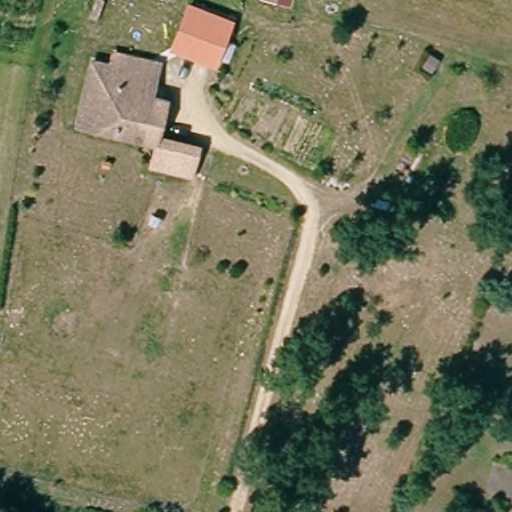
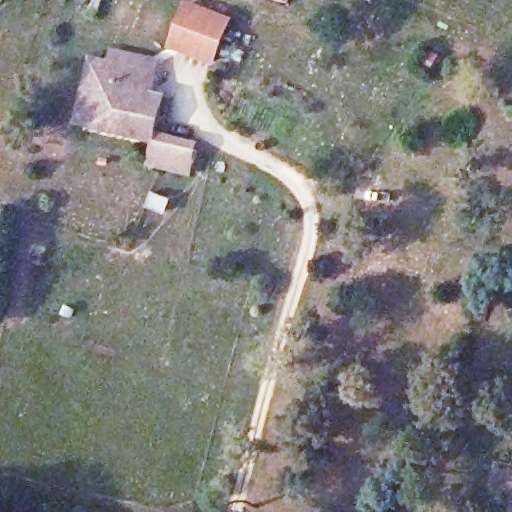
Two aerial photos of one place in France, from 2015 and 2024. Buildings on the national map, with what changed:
unchanged [(197,20),(229,31),(217,62),(185,50),(197,20)]
unchanged [(149,144),(134,140),(76,127),(82,103),(87,85),(92,63),(106,66),(109,54),(153,63),(150,75),(147,84),(145,95),(160,98),(149,144)]
unchanged [(190,179),(151,169),(157,145),(196,154),(192,170),(190,179)]

